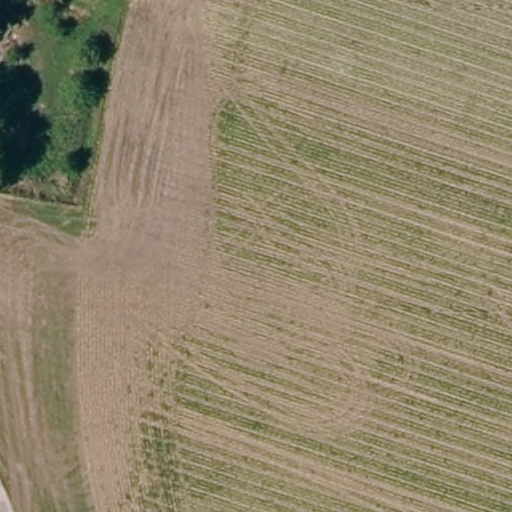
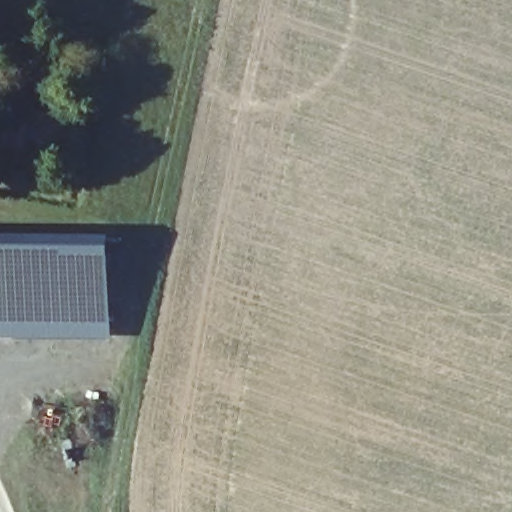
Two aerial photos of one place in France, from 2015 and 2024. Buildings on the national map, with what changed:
new [(116,237),(115,342),(0,340),(0,236),(116,237)]

